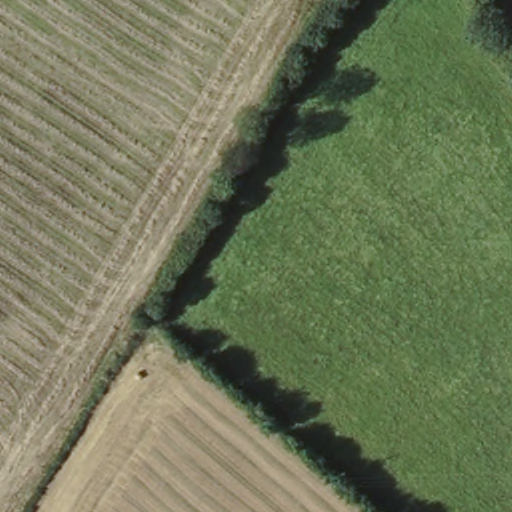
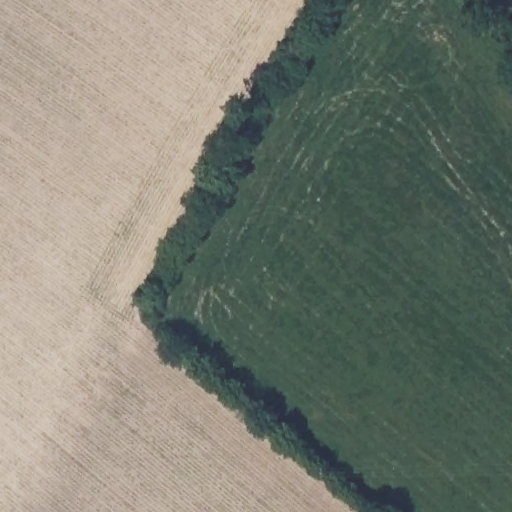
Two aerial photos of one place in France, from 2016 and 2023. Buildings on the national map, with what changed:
[]

